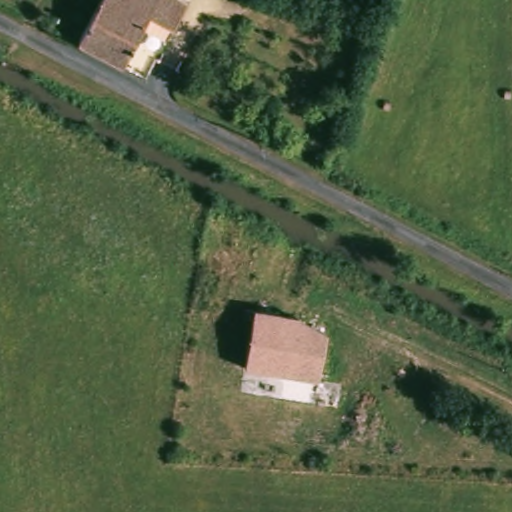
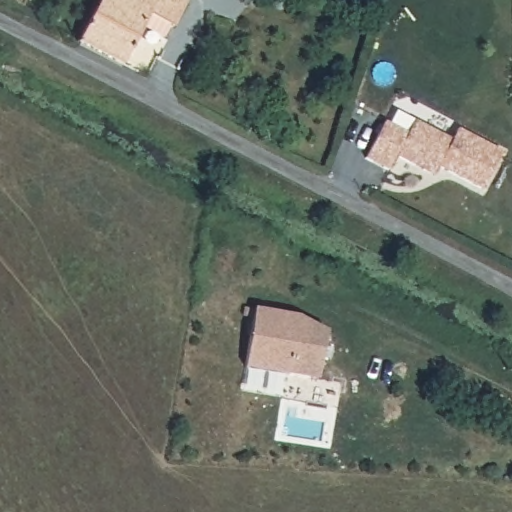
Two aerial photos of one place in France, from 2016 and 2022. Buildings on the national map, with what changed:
unchanged [(117,75),(72,51),(90,20),(101,0),(168,0),(163,10),(178,18),(163,45),(157,56),(134,44),(117,75)]
new [(387,111),(410,123),(417,110),(454,130),(460,119),(504,142),(484,179),(441,157),(436,166),(399,146),(391,160),(367,148),(387,111)]
unchanged [(290,373),(247,365),(254,317),(244,315),(245,307),(255,309),(299,317),(290,373)]
unchanged [(299,317),(327,332),(319,377),(290,373),(299,317)]

